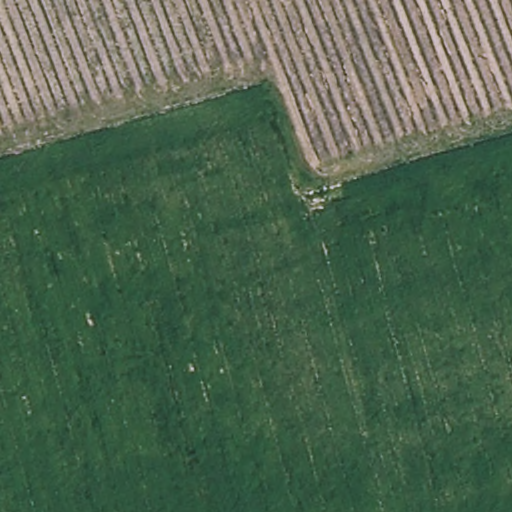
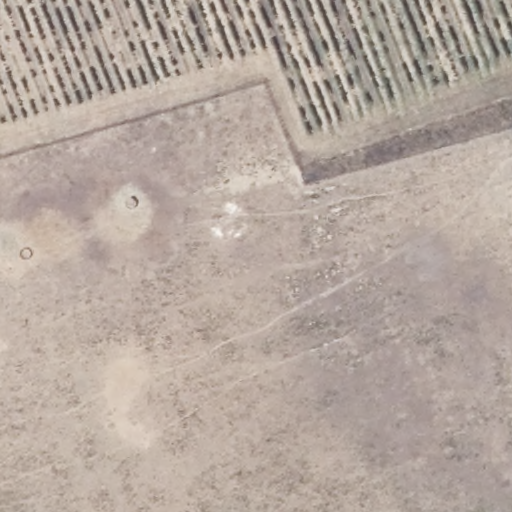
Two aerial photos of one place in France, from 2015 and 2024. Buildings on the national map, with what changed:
[]

